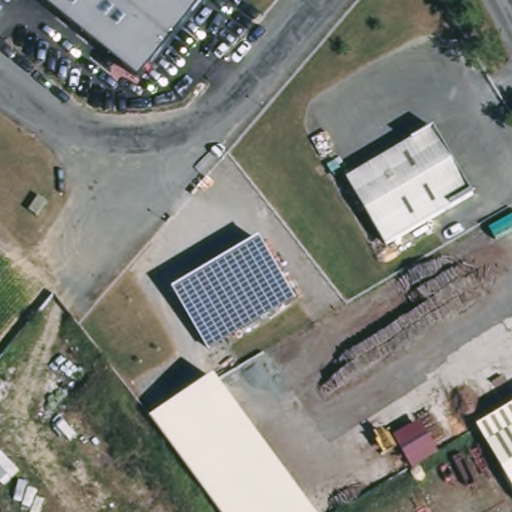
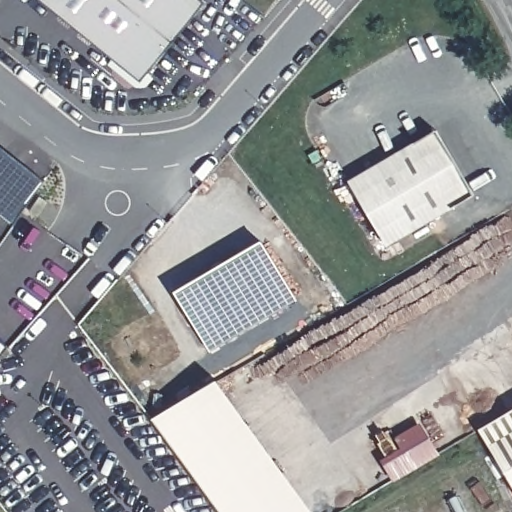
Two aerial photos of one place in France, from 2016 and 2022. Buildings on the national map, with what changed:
unchanged [(141,81),(39,0),(199,0),(204,4),(141,81)]
unchanged [(342,180),(418,135),(435,139),(467,193),(381,245),(342,180)]
new [(42,181),(12,225),(0,216),(0,148),(42,181)]
unchanged [(37,213),(29,207),(39,193),(47,199),(37,213)]
unchanged [(176,292),(260,244),(295,301),(211,352),(176,292)]
new [(8,345),(0,355),(0,339),(8,345)]
unchanged [(314,512),(219,512),(150,418),(218,381),(314,512)]
unchanged [(512,494),(476,430),(512,409),(512,494)]
unchanged [(440,457),(413,472),(395,438),(421,423),(440,457)]

